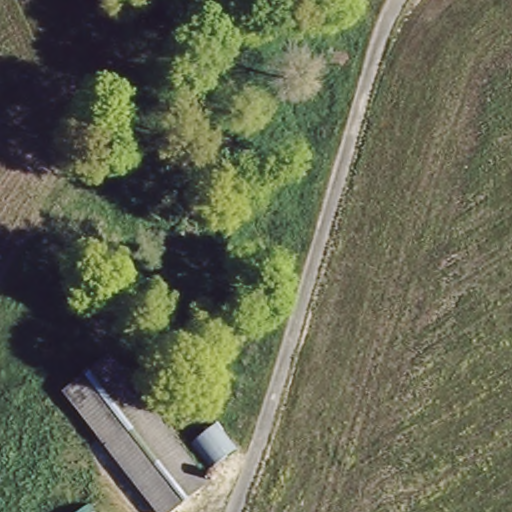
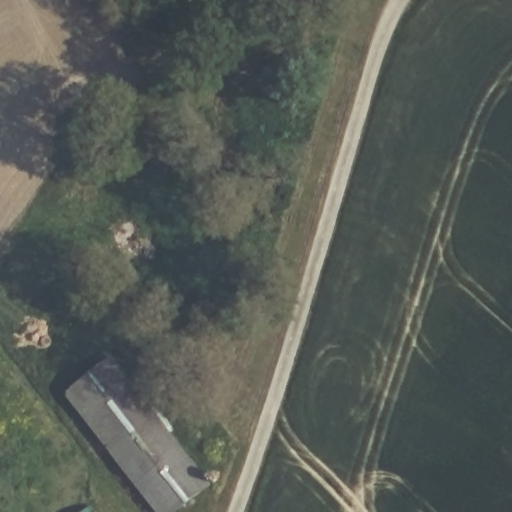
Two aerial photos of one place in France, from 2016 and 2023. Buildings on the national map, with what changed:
unchanged [(100,371),(205,482),(173,512),(164,512),(64,405),(100,371)]
unchanged [(85,508),(88,512),(79,512),(85,508)]

